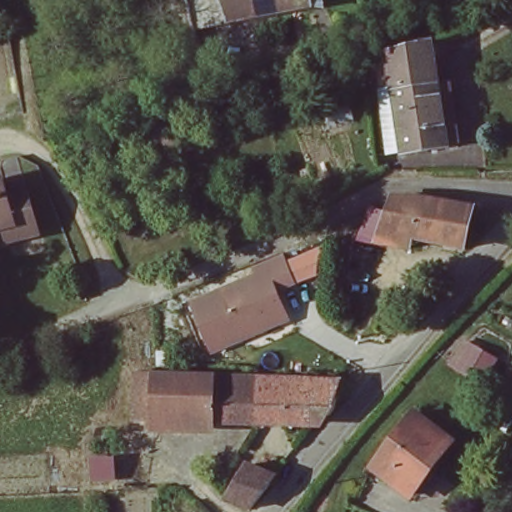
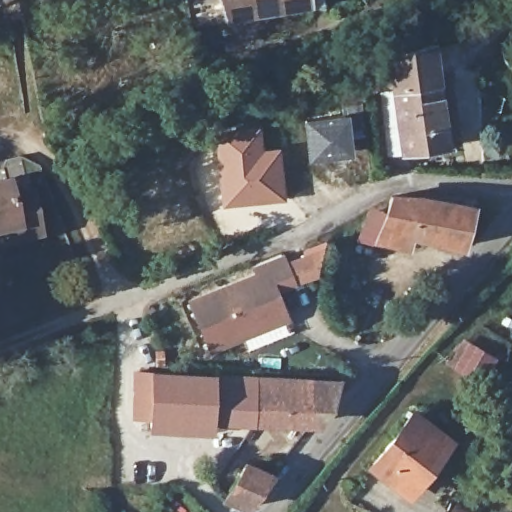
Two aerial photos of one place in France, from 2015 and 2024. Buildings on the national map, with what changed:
unchanged [(232,14),(227,2),(195,8),(192,0),(296,0),(232,14)]
unchanged [(395,95),(388,97),(378,99),(372,75),(388,69),(385,56),(384,52),(390,51),(426,42),(427,46),(445,114),(458,112),(466,142),(411,155),(395,95)]
unchanged [(394,158),(387,129),(378,99),(388,97),(395,95),(411,155),(394,158)]
new [(347,109),(353,153),(307,161),(300,114),(347,109)]
new [(260,119),(263,147),(281,145),(285,201),(221,209),(212,126),(260,119)]
unchanged [(22,162),(32,198),(43,236),(13,244),(9,232),(0,235),(0,173),(7,167),(22,162)]
unchanged [(360,235),(365,211),(390,210),(394,197),(413,197),(422,197),(475,205),(463,244),(410,231),(405,246),(392,243),(389,282),(342,273),(350,235),(360,235)]
unchanged [(280,292),(291,320),(211,354),(189,301),(252,273),(250,267),(286,254),(287,260),(313,250),(323,275),(280,292)]
unchanged [(188,419),(187,427),(152,427),(153,412),(132,412),(133,369),(156,370),(248,372),(245,420),(188,419)]
unchanged [(307,411),(307,420),(245,420),(248,372),(335,375),(325,407),(323,410),(320,414),(307,411)]
unchanged [(368,472),(409,415),(445,439),(405,497),(368,472)]
demolished [(78,488),(76,460),(113,458),(115,485),(78,488)]
unchanged [(232,512),(222,508),(229,490),(250,458),(277,467),(262,485),(247,506),(243,512),(232,512)]

